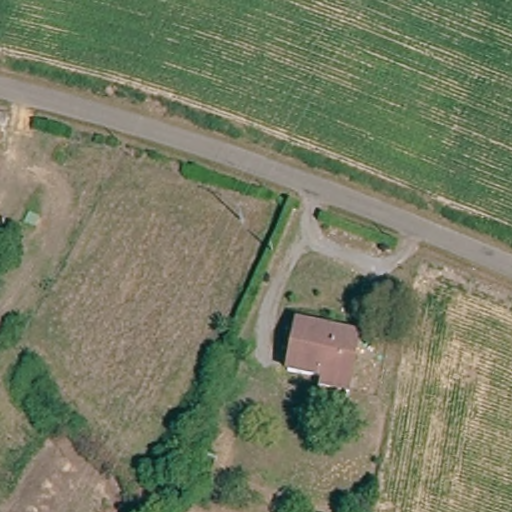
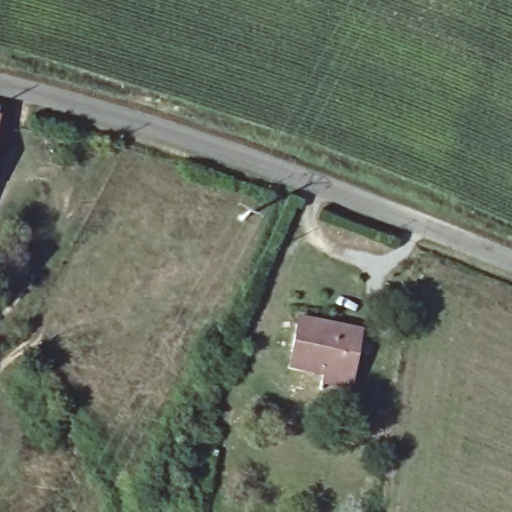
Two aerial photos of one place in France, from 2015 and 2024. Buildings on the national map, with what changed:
unchanged [(0,130),(0,110),(11,112),(8,131),(0,130)]
unchanged [(322,385),(324,375),(288,368),(298,318),(348,327),(359,330),(356,351),(352,375),(349,390),(322,385)]

